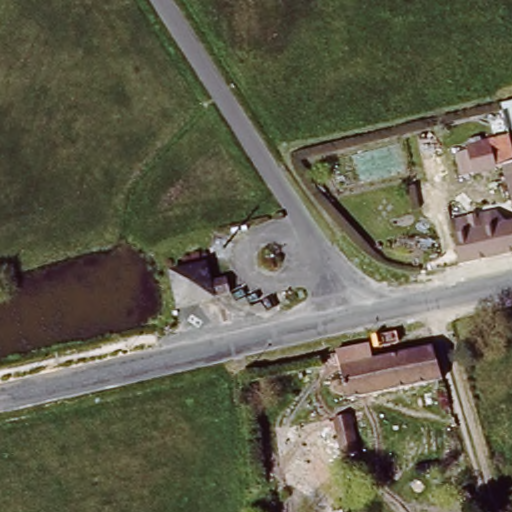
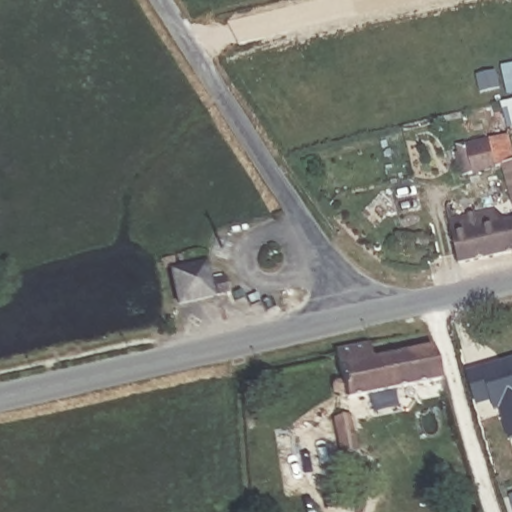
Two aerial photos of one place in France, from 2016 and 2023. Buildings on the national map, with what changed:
unchanged [(512,100),(512,126),(507,127),(512,145),(512,205),(501,165),(461,175),(455,152),(463,149),(462,145),(501,135),(493,104),(512,100)]
unchanged [(446,222),(491,213),(493,226),(512,223),(512,252),(455,264),(446,222)]
unchanged [(165,267),(201,259),(203,275),(218,273),(225,289),(213,295),(173,305),(165,267)]
unchanged [(442,377),(410,381),(345,394),(337,344),(369,338),(368,333),(427,322),(442,377)]
new [(512,441),(510,441),(501,412),(493,414),(490,403),(476,407),(466,374),(512,361),(512,441)]
unchanged [(327,393),(332,393),(335,410),(330,410),(327,393)]
unchanged [(340,433),(335,433),(331,417),(348,414),(355,452),(343,455),(340,433)]
new [(512,497),(511,495),(512,495),(512,497)]

